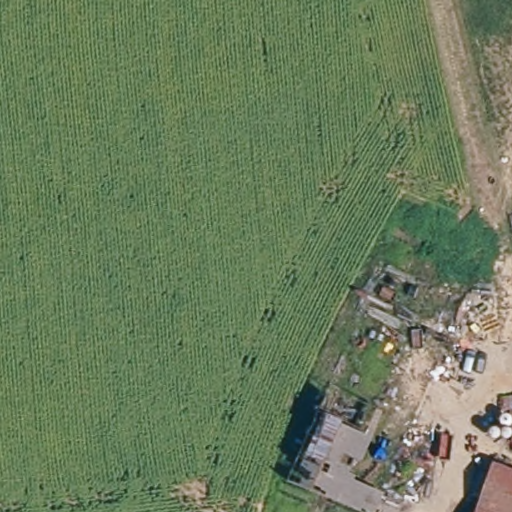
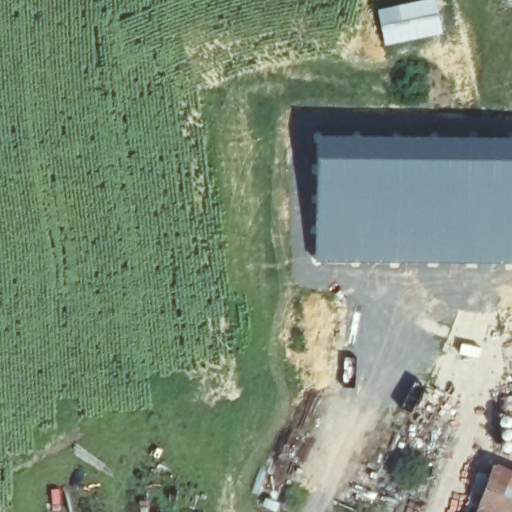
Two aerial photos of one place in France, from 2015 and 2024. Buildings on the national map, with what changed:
new [(419,0),(436,0),(442,34),(384,45),(377,9),(419,0)]
new [(315,134),(512,136),(512,263),(467,263),(314,260),(316,201),(315,134)]
new [(497,297),(480,328),(428,300),(446,269),(497,297)]
new [(377,412),(383,415),(363,462),(346,455),(341,466),(352,472),(352,475),(357,478),(356,481),(385,493),(376,512),(362,512),(290,482),(323,412),(366,436),(377,412)]
unchanged [(512,466),(512,512),(473,512),(495,459),(512,466)]

